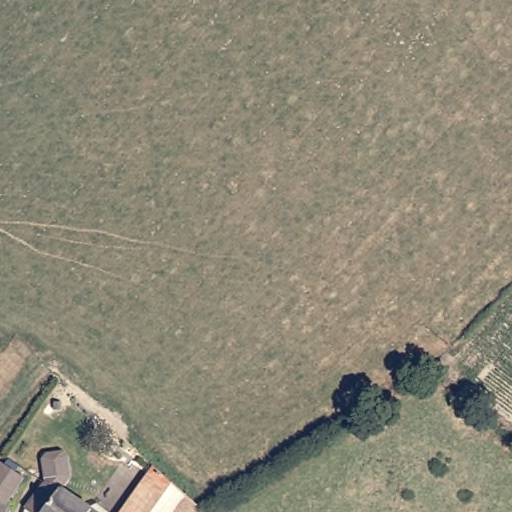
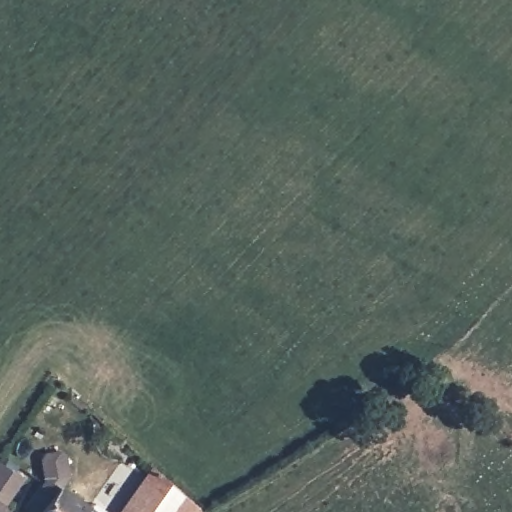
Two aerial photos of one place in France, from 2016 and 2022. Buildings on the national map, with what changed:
unchanged [(41,459),(66,455),(69,487),(100,512),(42,512),(48,504),(41,459)]
unchanged [(2,502),(9,506),(5,512),(0,512),(0,461),(21,478),(2,502)]
unchanged [(119,512),(152,467),(207,508),(202,512),(119,512)]

